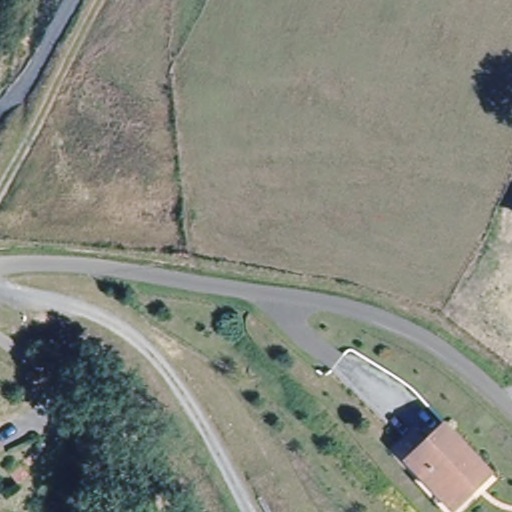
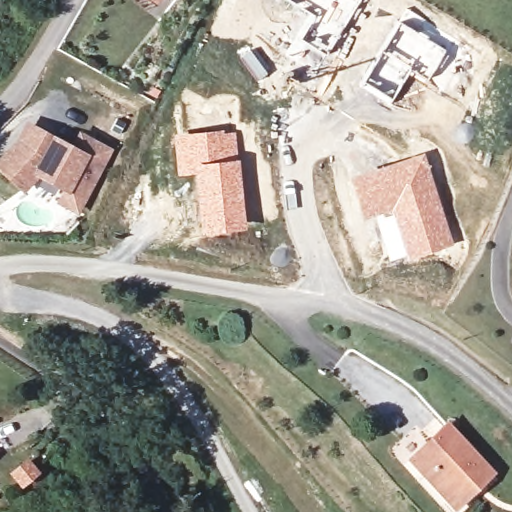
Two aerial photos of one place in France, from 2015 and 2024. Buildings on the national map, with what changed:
new [(326,54),(300,38),(314,15),(289,0),(359,0),(326,54)]
new [(398,22),(446,50),(427,77),(410,66),(391,97),(362,80),(398,22)]
new [(54,203),(61,190),(38,177),(22,195),(0,172),(0,155),(17,136),(26,120),(51,134),(72,144),(79,130),(112,149),(79,215),(54,203)]
new [(235,130),(246,230),(200,237),(192,174),(177,175),(173,135),(235,130)]
new [(423,152),(453,245),(405,260),(404,256),(387,261),(379,230),(384,229),(387,233),(389,232),(391,238),(397,236),(389,211),(360,219),(347,175),(423,152)]
unchanged [(490,473),(472,488),(470,485),(450,501),(421,468),(412,458),(449,426),(490,473)]

